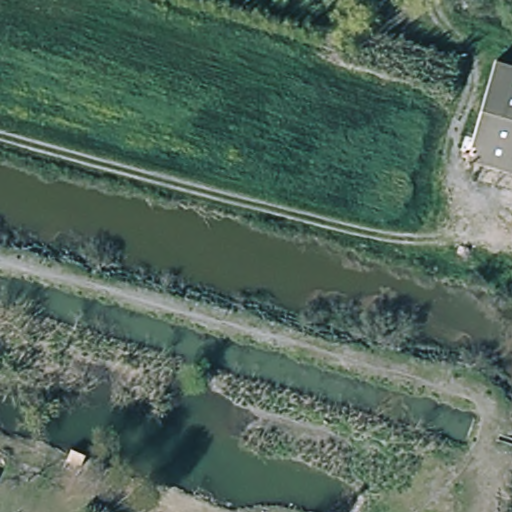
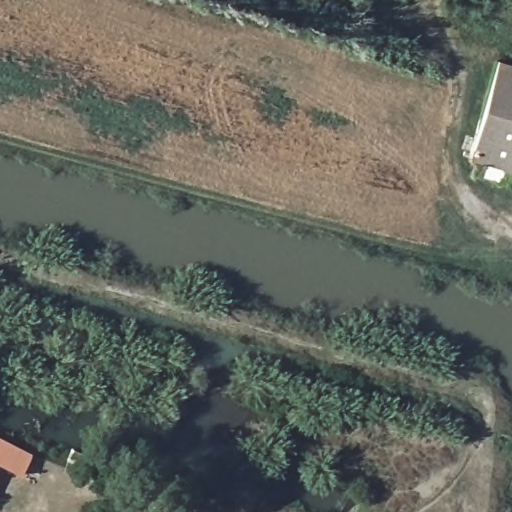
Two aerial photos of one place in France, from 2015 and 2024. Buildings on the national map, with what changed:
unchanged [(512,66),(512,172),(463,157),(492,60),(512,66)]
new [(0,438),(32,453),(22,476),(0,466),(0,438)]

